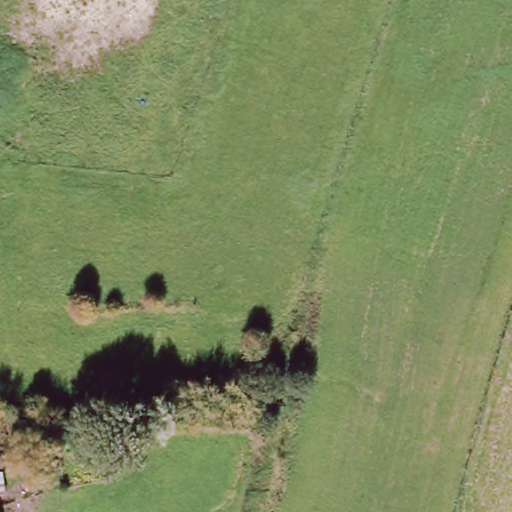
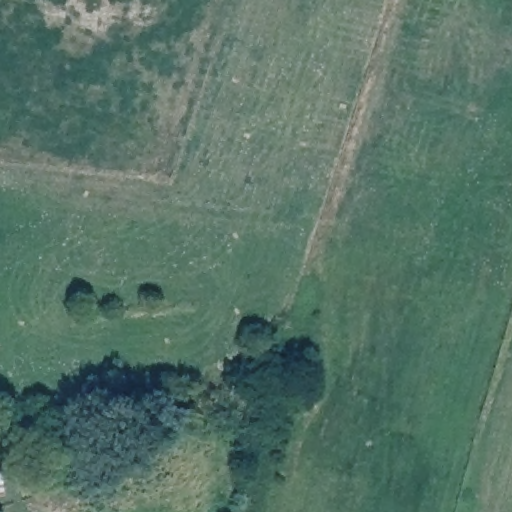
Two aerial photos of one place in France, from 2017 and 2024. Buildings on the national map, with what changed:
unchanged [(0,489),(0,473),(2,489),(0,489)]

